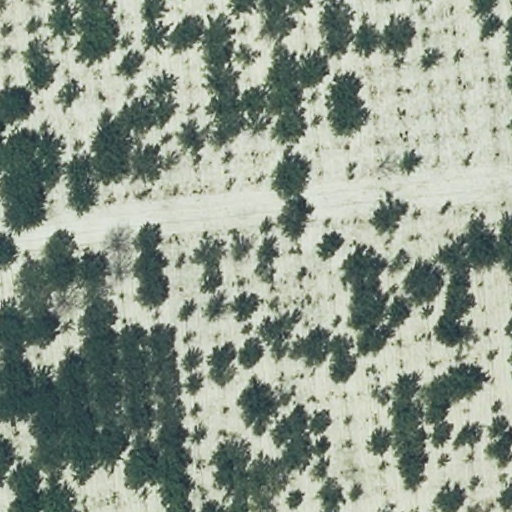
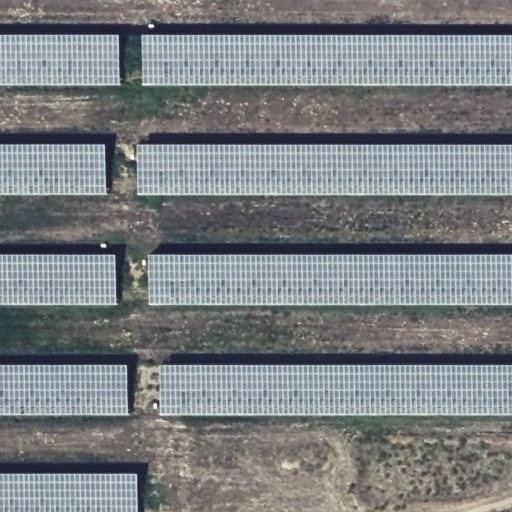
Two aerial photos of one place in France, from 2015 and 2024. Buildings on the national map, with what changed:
new [(0,84),(0,34),(119,35),(119,84),(0,84)]
new [(143,85),(144,34),(512,34),(512,84),(143,85)]
new [(0,143),(106,144),(106,192),(0,192),(0,143)]
new [(138,194),(138,143),(512,144),(512,193),(138,194)]
new [(0,303),(0,254),(116,255),(118,303),(0,303)]
new [(149,304),(150,254),(512,254),(512,303),(149,304)]
new [(0,413),(0,363),(129,364),(128,413),(0,413)]
new [(161,414),(161,364),(512,364),(512,413),(161,414)]
new [(0,473),(138,473),(139,512),(0,512),(0,473)]

